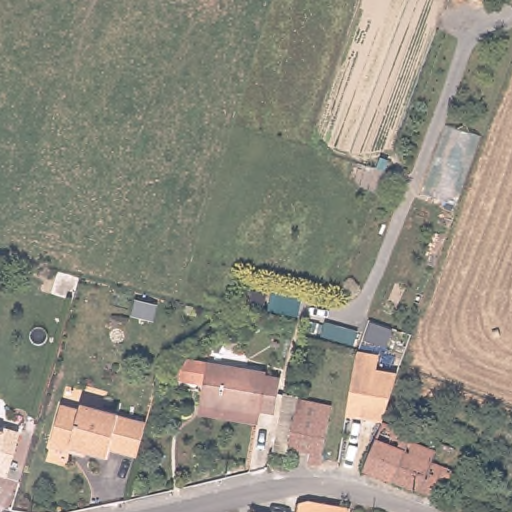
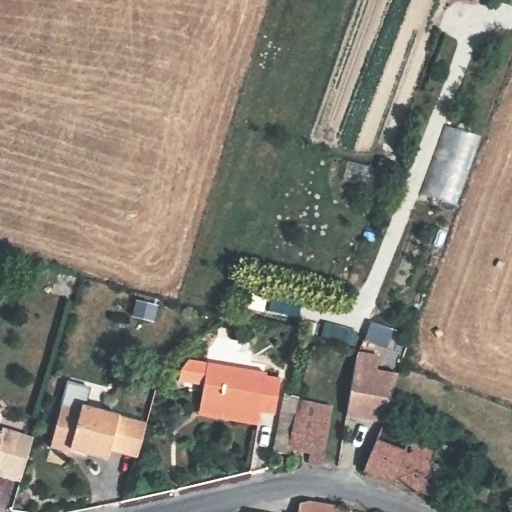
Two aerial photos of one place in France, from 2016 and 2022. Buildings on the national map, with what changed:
unchanged [(483,134),(457,203),(423,192),(451,122),(483,134)]
unchanged [(207,360),(206,364),(281,374),(274,414),(259,413),(257,424),(198,416),(202,385),(178,381),(182,355),(207,360)]
unchanged [(376,363),(374,368),(398,372),(384,421),(382,425),(344,416),(353,358),(376,363)]
unchanged [(332,401),(322,462),(308,459),(310,453),(292,450),(271,454),(282,409),(284,392),(332,401)]
unchanged [(106,459),(71,448),(70,451),(49,446),(60,403),(80,408),(81,403),(146,423),(137,456),(109,448),(106,459)]
unchanged [(412,438),(438,448),(435,460),(456,468),(446,496),(367,467),(382,425),(384,421),(413,432),(412,438)]
unchanged [(17,432),(34,436),(20,483),(4,478),(0,477),(0,427),(17,432)]
unchanged [(316,492),(357,503),(355,512),(304,512),(307,494),(316,492)]
unchanged [(289,512),(260,512),(261,506),(289,512)]

